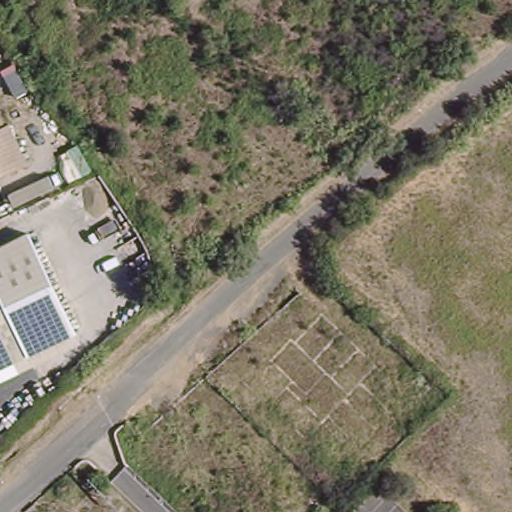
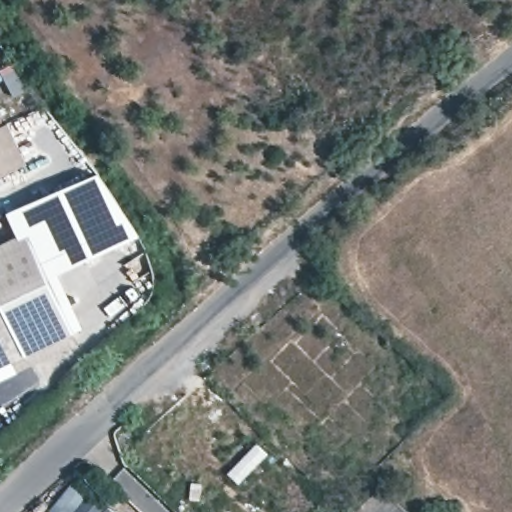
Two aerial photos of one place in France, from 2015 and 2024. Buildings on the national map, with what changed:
unchanged [(0,176),(0,126),(3,124),(23,165),(0,176)]
new [(142,237),(59,276),(87,330),(73,334),(28,239),(0,253),(0,246),(18,237),(9,215),(52,196),(100,176),(142,237)]
unchanged [(28,239),(76,339),(29,361),(0,300),(0,253),(28,239)]
unchanged [(29,361),(0,375),(0,300),(29,361)]

